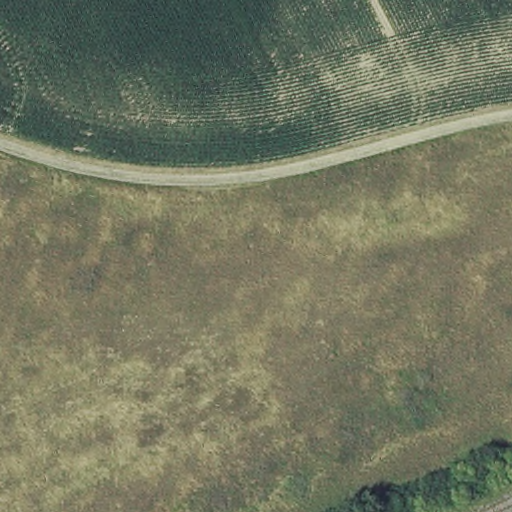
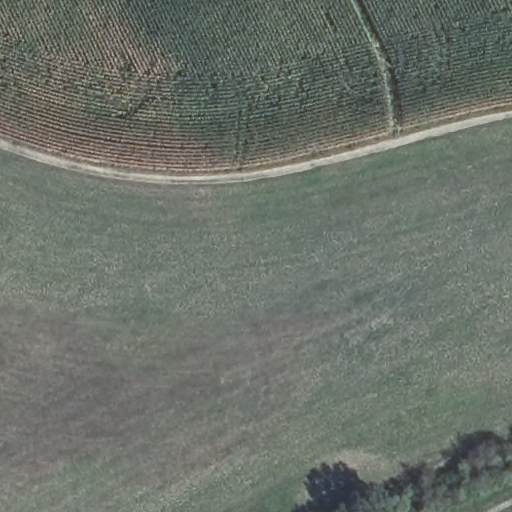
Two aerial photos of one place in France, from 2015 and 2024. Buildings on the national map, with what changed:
[]

